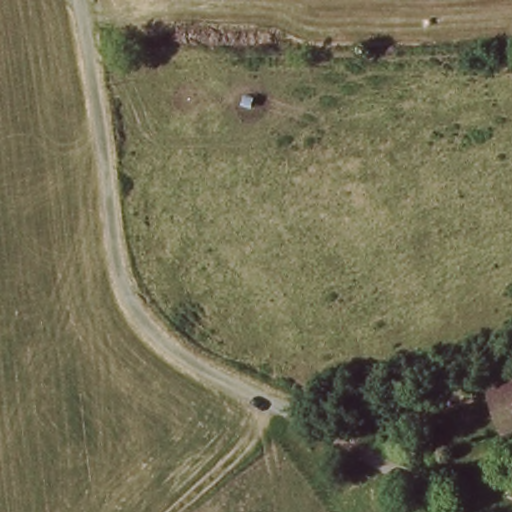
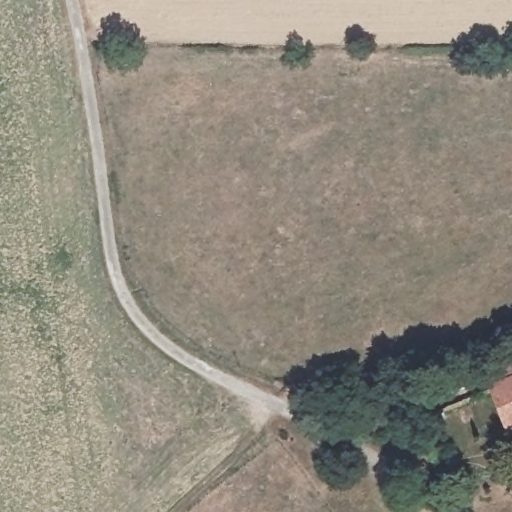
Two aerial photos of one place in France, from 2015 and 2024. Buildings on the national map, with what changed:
unchanged [(487,389),(512,379),(512,434),(507,436),(487,389)]
unchanged [(504,495),(512,482),(512,499),(504,495)]

